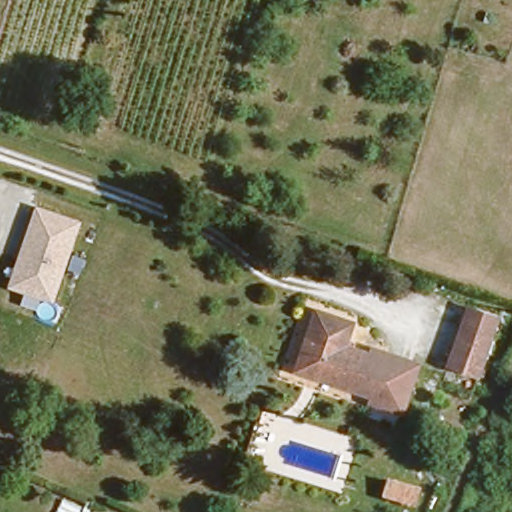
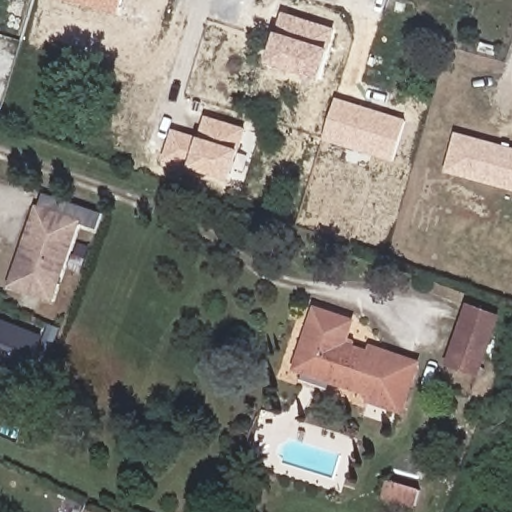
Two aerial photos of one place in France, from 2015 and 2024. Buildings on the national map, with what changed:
new [(64,0),(124,0),(120,15),(64,0)]
new [(267,64),(276,33),(283,13),(337,30),(331,50),(320,80),(267,64)]
new [(395,162),(324,141),(336,98),(408,120),(395,162)]
new [(241,150),(230,181),(189,169),(164,162),(172,129),(200,137),(206,116),(247,129),(241,150)]
new [(457,132),(512,148),(512,191),(445,172),(457,132)]
unchanged [(55,302),(41,296),(36,310),(21,305),(25,291),(10,285),(37,206),(82,221),(55,302)]
unchanged [(448,358),(467,301),(494,310),(475,367),(448,358)]
unchanged [(307,305),(347,318),(344,327),(355,331),(351,342),(380,352),(383,342),(432,359),(413,414),(362,396),(365,390),(290,364),(286,362),(307,305)]
new [(44,337),(28,376),(0,365),(0,319),(44,337)]
new [(389,480),(420,490),(415,506),(385,497),(389,480)]

